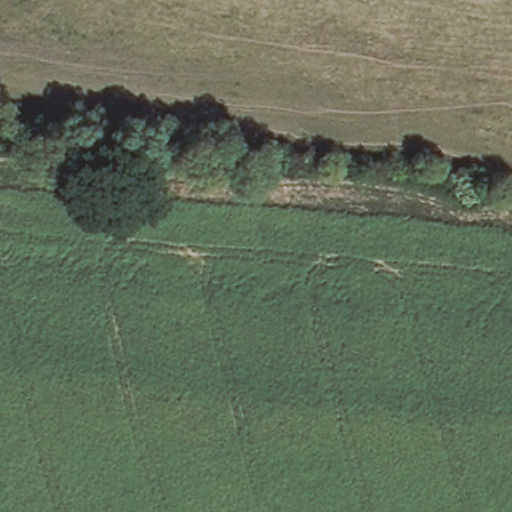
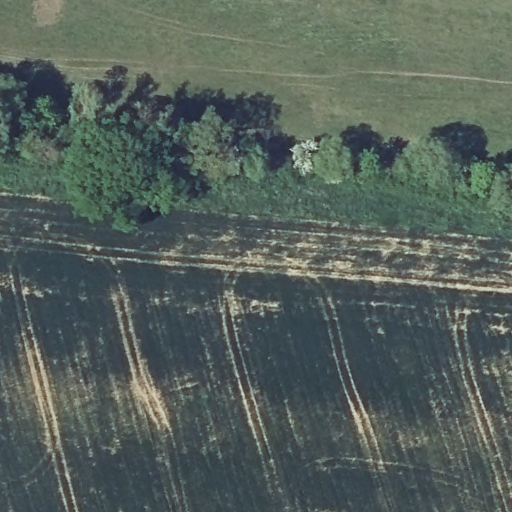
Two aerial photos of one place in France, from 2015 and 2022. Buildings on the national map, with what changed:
[]

